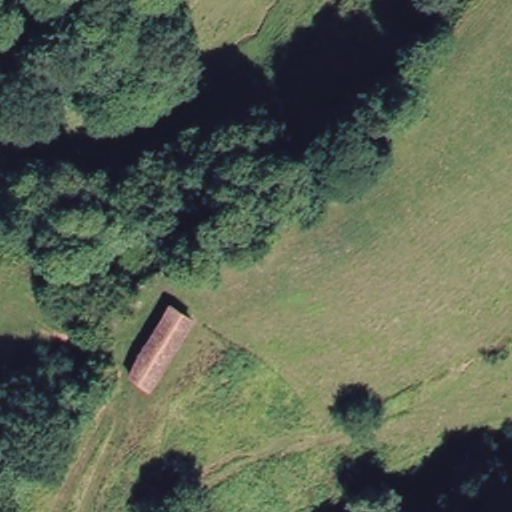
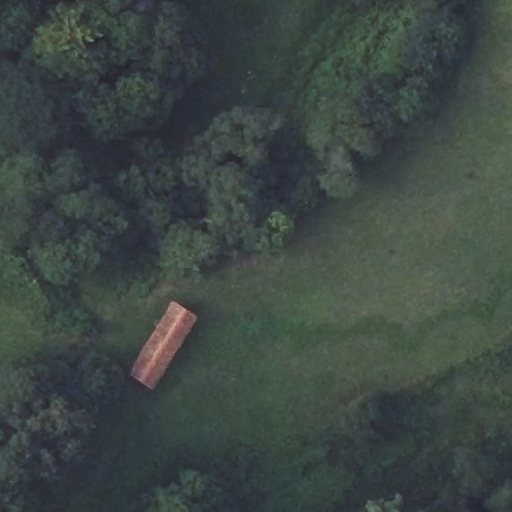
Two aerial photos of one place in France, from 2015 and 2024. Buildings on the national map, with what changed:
unchanged [(193,314),(155,378),(129,364),(172,300),(193,314)]

